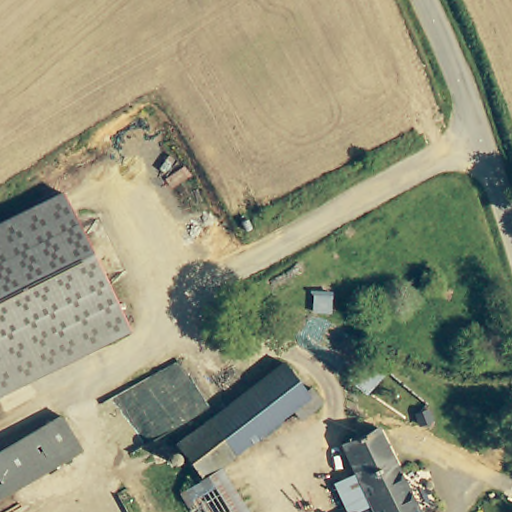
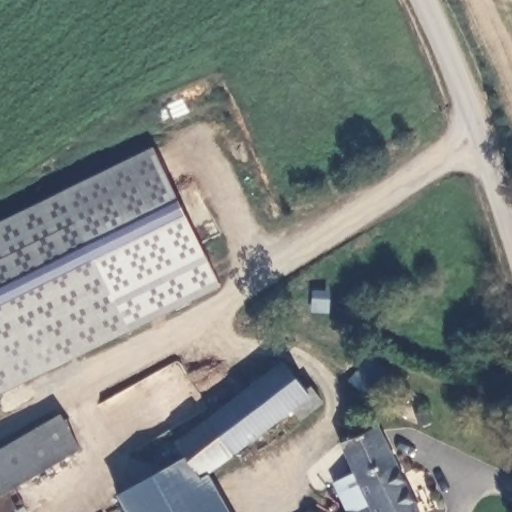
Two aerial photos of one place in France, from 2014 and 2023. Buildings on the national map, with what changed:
new [(61,194),(153,149),(219,285),(126,330),(61,194)]
unchanged [(126,330),(0,391),(0,223),(61,194),(126,330)]
unchanged [(382,369),(360,393),(344,380),(367,355),(382,369)]
unchanged [(306,385),(313,383),(324,397),(302,415),(293,403),(221,461),(205,473),(179,439),(287,358),(306,385)]
unchanged [(423,410),(424,410),(425,410),(426,411),(427,411),(427,412),(428,413),(429,414),(429,415),(429,416),(430,417),(430,418),(430,419),(429,420),(429,421),(429,422),(428,423),(427,424),(426,425),(425,425),(424,426),(423,426),(422,426),(420,426),(419,426),(418,426),(417,425),(416,424),(415,424),(414,423),(414,422),(413,421),(413,420),(413,418),(413,417),(413,416),(413,415),(414,414),(415,413),(415,412),(416,411),(417,411),(418,410),(419,410),(420,410),(421,410),(422,410),(423,410)]
unchanged [(0,495),(0,449),(61,414),(80,449),(0,495)]
unchanged [(338,477),(357,470),(345,439),(381,422),(422,512),(349,512),(348,510),(352,508),(338,477)]
new [(190,453),(205,473),(228,512),(129,512),(119,494),(190,453)]
unchanged [(349,512),(345,512),(348,510),(349,512)]

